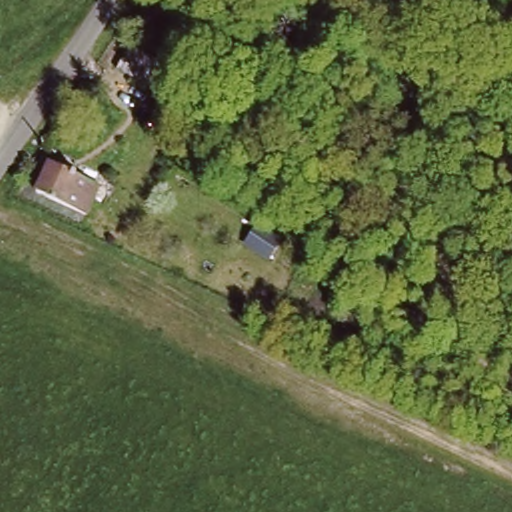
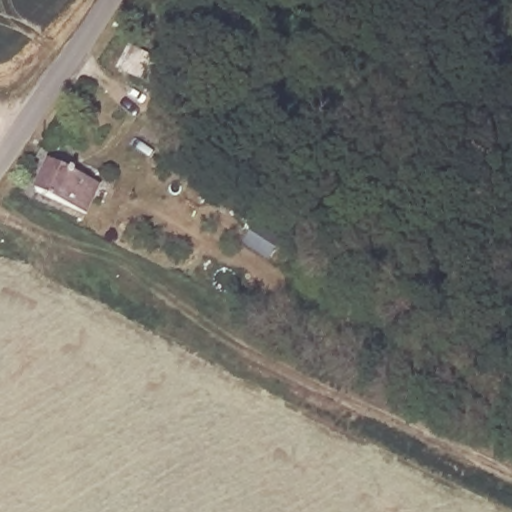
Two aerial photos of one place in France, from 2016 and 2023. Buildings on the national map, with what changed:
unchanged [(157,59),(142,79),(119,61),(134,41),(157,59)]
unchanged [(83,216),(60,202),(35,188),(51,161),(76,176),(98,189),(83,216)]

